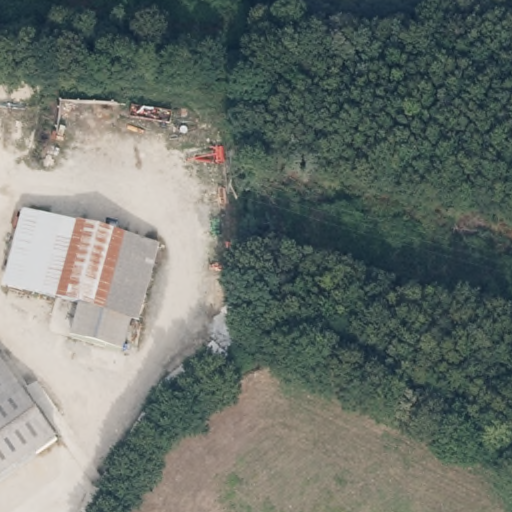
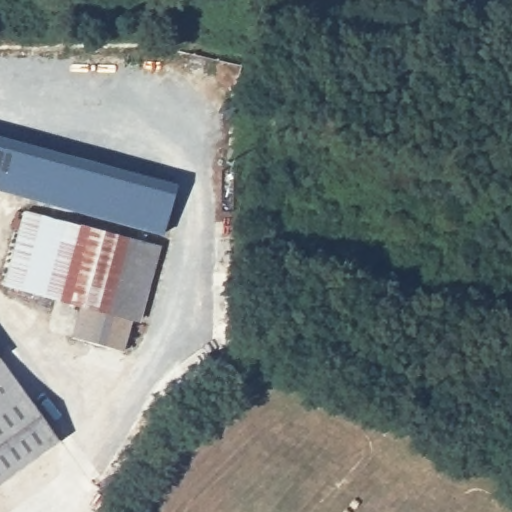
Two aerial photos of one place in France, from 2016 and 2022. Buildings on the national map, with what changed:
new [(174,194),(163,234),(0,190),(0,148),(174,194)]
unchanged [(23,215),(27,210),(156,245),(156,254),(139,320),(135,318),(99,309),(84,305),(6,283),(23,215)]
unchanged [(135,318),(125,352),(75,338),(84,305),(99,309),(135,318)]
unchanged [(3,357),(62,439),(0,483),(0,360),(3,357)]

